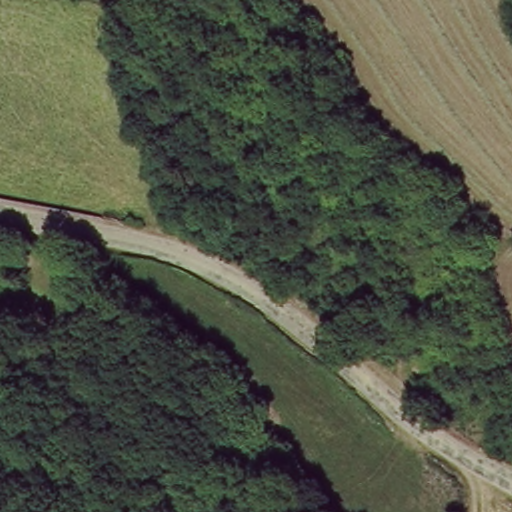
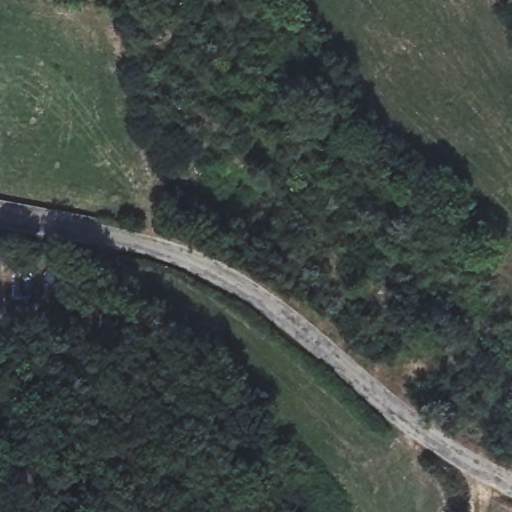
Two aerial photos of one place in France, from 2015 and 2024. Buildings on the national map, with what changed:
[]

